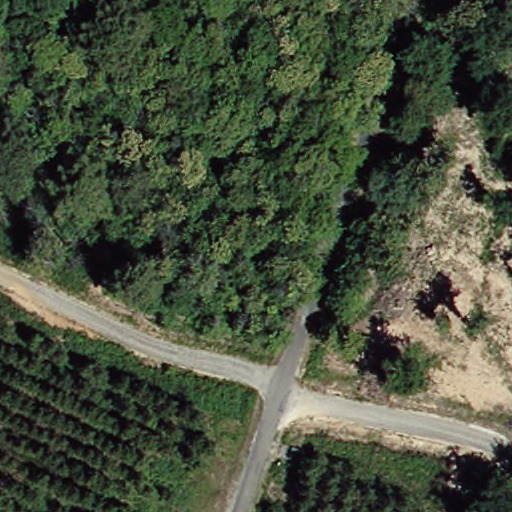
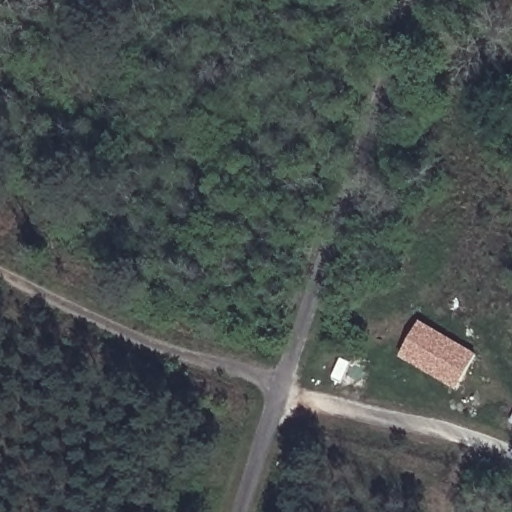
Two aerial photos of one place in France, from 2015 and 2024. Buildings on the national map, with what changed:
new [(478,356),(456,391),(399,357),(420,323),(478,356)]

